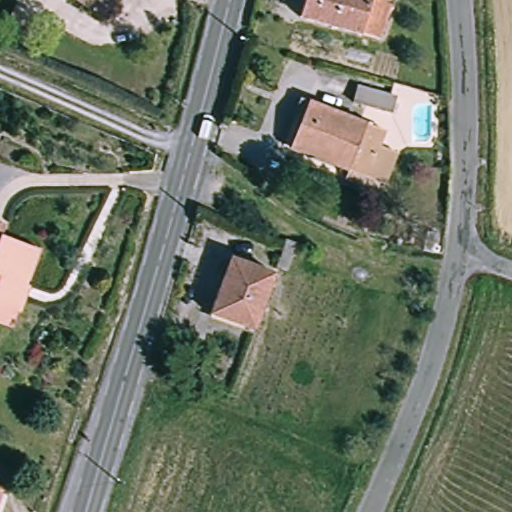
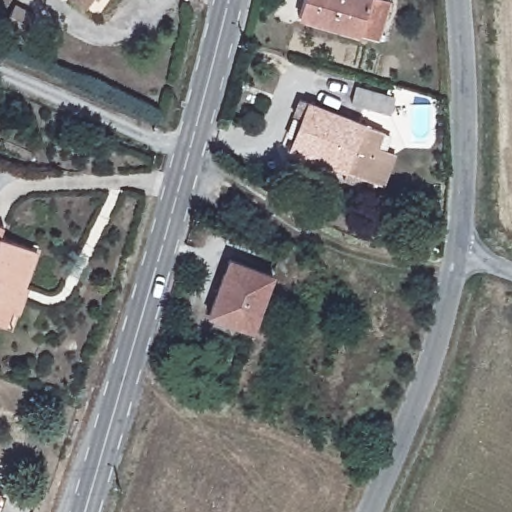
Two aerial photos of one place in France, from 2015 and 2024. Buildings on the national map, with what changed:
unchanged [(94,0),(87,11),(72,0),(94,0)]
unchanged [(381,41),(360,36),(360,37),(299,20),(305,0),(384,0),(392,3),(381,41)]
unchanged [(21,6),(41,16),(30,38),(10,27),(21,6)]
unchanged [(397,99),(392,116),(352,106),(357,88),(397,99)]
unchanged [(385,188),(366,180),(362,190),(344,183),(347,173),(290,150),(301,120),(293,116),(300,101),(386,134),(380,149),(397,156),(385,188)]
unchanged [(0,238),(0,224),(4,225),(0,238)]
unchanged [(3,323),(0,322),(0,238),(33,249),(22,286),(27,288),(15,327),(3,323)]
unchanged [(253,332),(210,317),(230,261),(273,276),(253,332)]

